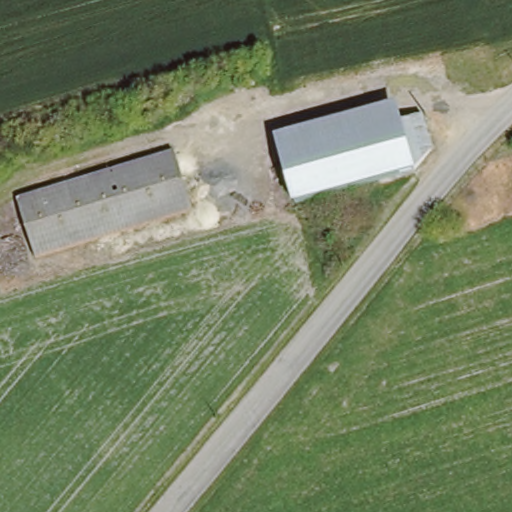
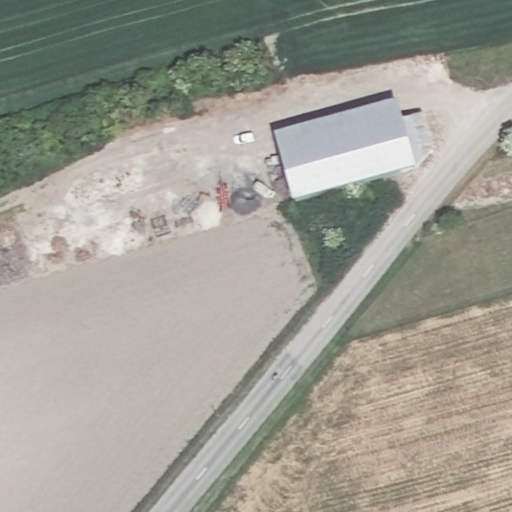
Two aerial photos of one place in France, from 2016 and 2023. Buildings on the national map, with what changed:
unchanged [(294,209),(277,150),(400,116),(417,175),(294,209)]
demolished [(17,197),(175,148),(197,213),(37,261),(17,197)]

